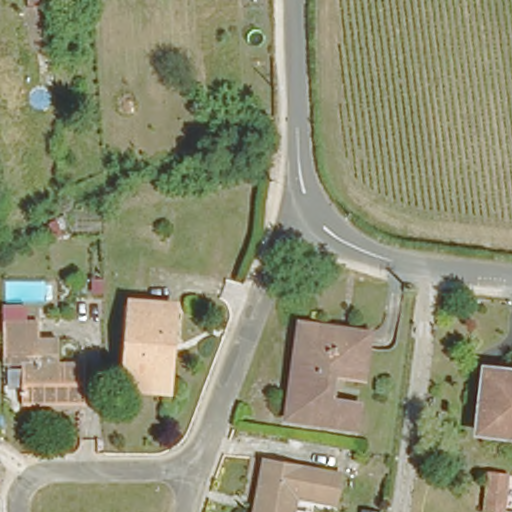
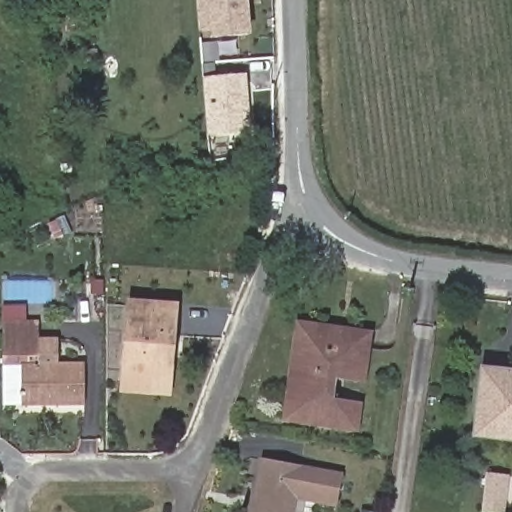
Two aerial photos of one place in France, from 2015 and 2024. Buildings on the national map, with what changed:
new [(252,35),(212,38),(211,29),(199,31),(197,0),(249,0),(252,35)]
new [(203,76),(247,73),(252,132),(208,135),(203,76)]
unchanged [(275,174),(255,177),(253,157),(277,153),(275,174)]
unchanged [(124,383),(125,371),(130,303),(175,305),(174,332),(172,384),(124,383)]
unchanged [(0,353),(0,309),(37,310),(37,329),(56,330),(55,353),(83,355),(81,396),(19,396),(18,354),(0,353)]
unchanged [(367,381),(329,375),(326,399),(361,404),(357,432),(281,419),(284,392),(297,321),(309,323),(374,334),(367,381)]
unchanged [(481,368),(512,372),(512,436),(472,431),(481,368)]
unchanged [(328,465),(323,495),(290,490),(286,512),(246,512),(257,453),(328,465)]
unchanged [(492,509),(497,468),(512,470),(512,503),(511,511),(492,509)]

